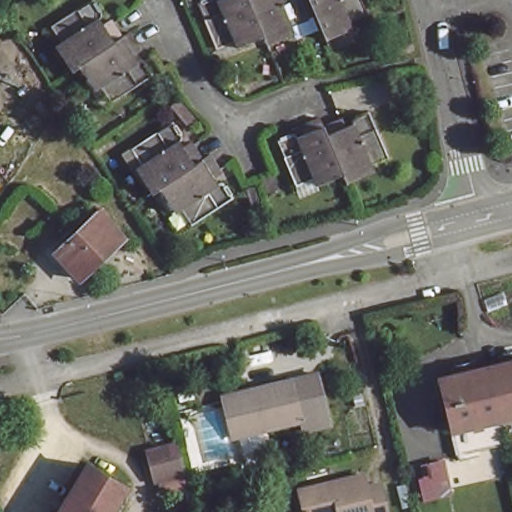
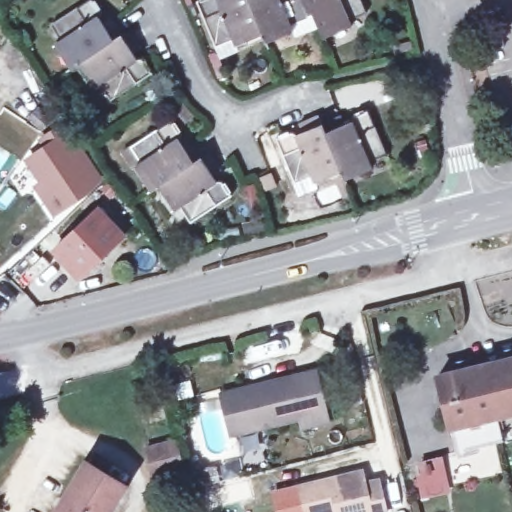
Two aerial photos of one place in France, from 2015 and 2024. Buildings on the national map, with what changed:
unchanged [(131,34),(140,47),(128,55),(133,62),(140,58),(143,61),(153,75),(111,103),(100,84),(93,89),(88,79),(93,75),(85,63),(78,67),(68,53),(61,56),(55,45),(60,41),(51,25),(88,0),(92,0),(103,16),(97,21),(101,28),(113,21),(118,29),(124,39),(131,34)]
unchanged [(244,49),(235,53),(231,54),(228,48),(213,54),(191,8),(204,2),(212,4),(215,9),(221,6),(218,0),(293,0),(304,25),(287,32),(291,41),(279,45),(265,51),(262,44),(244,49)]
unchanged [(303,0),(359,0),(366,18),(346,25),(350,33),(338,38),(323,44),(319,36),(303,0)]
unchanged [(310,185),(306,179),(289,187),(268,142),(284,135),(287,136),(291,144),(296,141),(291,129),(311,120),(315,124),(326,119),(332,116),(339,131),(347,127),(344,119),(345,115),(362,108),(381,154),(364,162),(366,169),(355,174),(339,181),(336,175),(319,182),(310,185)]
unchanged [(141,174),(136,177),(130,165),(135,161),(126,147),(166,122),(176,136),(175,141),(170,145),(173,152),(185,145),(187,147),(196,162),(205,156),(208,162),(213,170),(202,178),(206,185),(213,181),(218,183),(228,197),(186,223),(175,204),(168,209),(161,198),(168,194),(161,183),(152,189),(141,174)]
new [(61,213),(50,212),(32,185),(38,181),(23,160),(68,129),(103,179),(61,213)]
unchanged [(98,209),(123,235),(80,277),(55,251),(98,209)]
unchanged [(494,417),(500,441),(452,452),(446,427),(435,376),(449,372),(447,364),(468,359),(470,367),(497,361),(495,353),(512,348),(512,413),(494,417)]
unchanged [(300,377),(306,416),(216,438),(207,398),(300,377)]
unchanged [(160,491),(156,478),(153,478),(146,449),(172,442),(178,472),(181,485),(160,491)]
unchanged [(443,459),(450,485),(431,489),(425,463),(443,459)]
unchanged [(125,483),(106,512),(52,512),(85,462),(125,483)]
unchanged [(366,489),(378,488),(384,512),(303,512),(299,494),(363,479),(366,489)]

